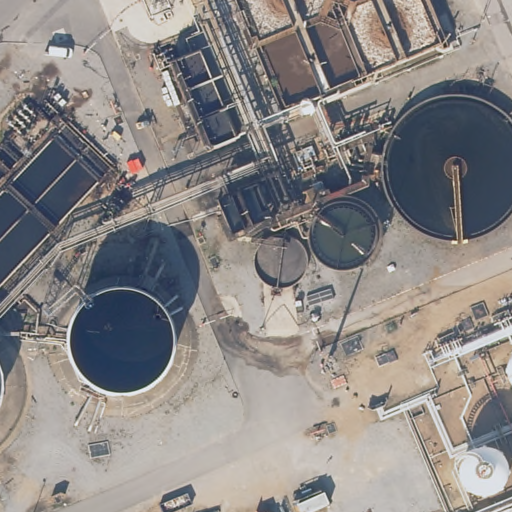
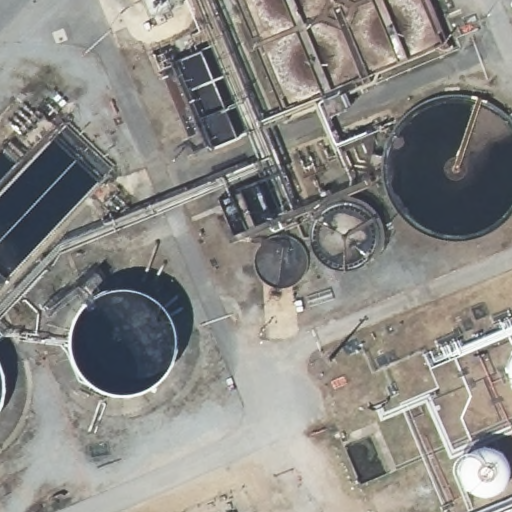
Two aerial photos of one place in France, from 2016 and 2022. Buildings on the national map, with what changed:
unchanged [(234,135),(204,146),(165,60),(199,49),(234,135)]

